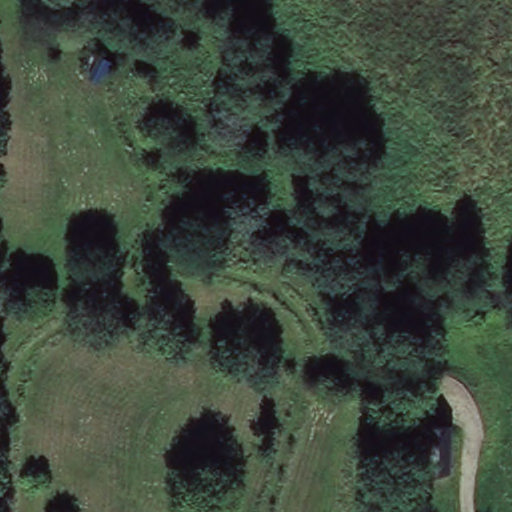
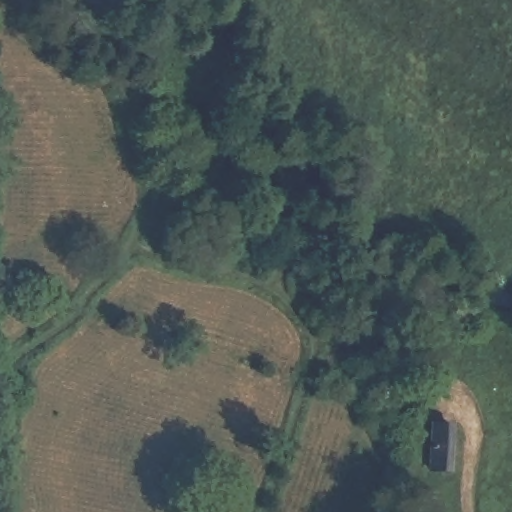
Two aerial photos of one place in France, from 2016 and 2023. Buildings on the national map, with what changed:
unchanged [(454,425),(452,470),(432,470),(433,425),(454,425)]

